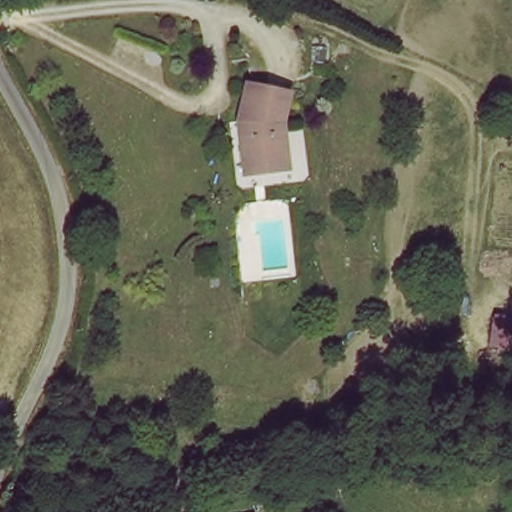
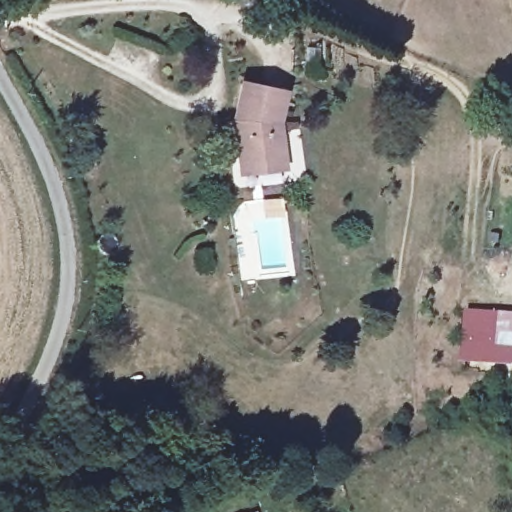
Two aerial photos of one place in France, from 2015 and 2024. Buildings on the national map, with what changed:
unchanged [(236,144),(233,120),(248,75),(286,89),(274,124),(279,162),(257,163),(238,163),(236,144)]
new [(458,360),(464,311),(512,316),(512,365),(458,360)]

